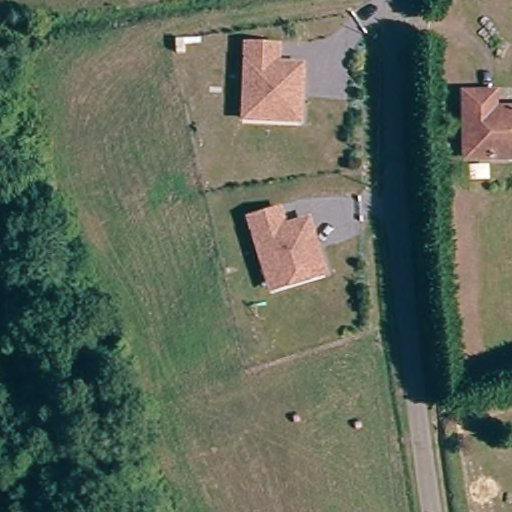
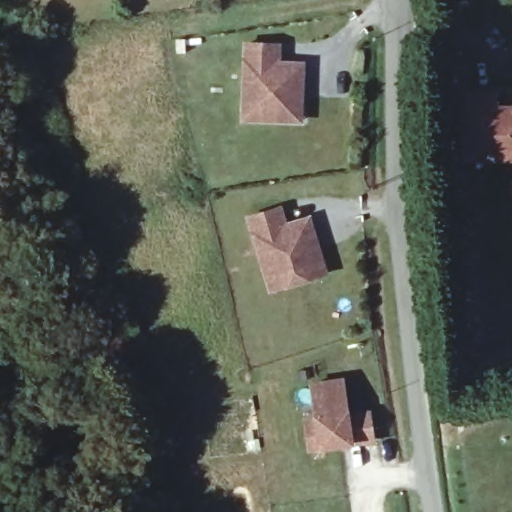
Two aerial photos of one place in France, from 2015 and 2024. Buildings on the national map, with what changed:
unchanged [(241,123),(242,109),(245,42),(277,43),(276,62),(293,62),(301,63),(300,69),(298,111),(298,125),(241,123)]
unchanged [(501,104),(512,104),(512,151),(471,150),(470,88),(501,89),(501,104)]
unchanged [(266,288),(263,275),(251,209),(283,203),(286,221),(303,218),(310,216),(311,222),(320,264),(322,277),(266,288)]
new [(350,412),(371,408),(376,442),(356,447),(320,452),(310,451),(305,418),(315,415),(311,382),(343,377),(350,412)]

